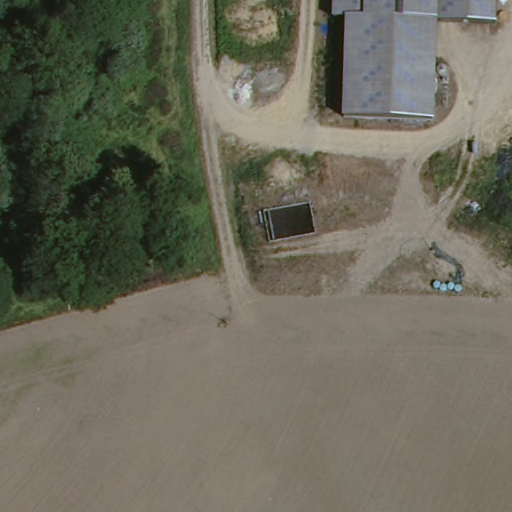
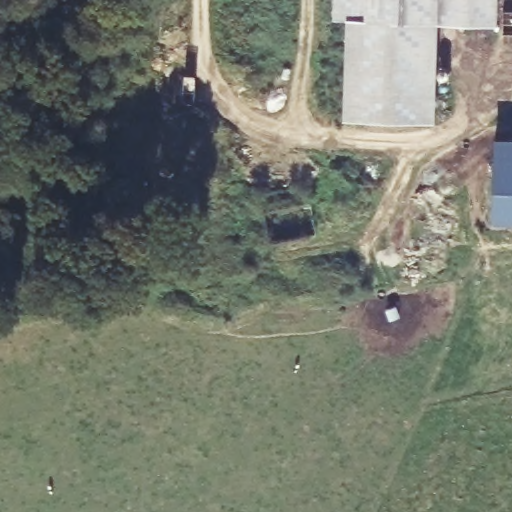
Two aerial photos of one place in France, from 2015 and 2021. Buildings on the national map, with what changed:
unchanged [(493,28),(434,28),(433,125),(337,124),(338,26),(325,26),(326,0),(494,0),(493,28)]
new [(491,221),(494,139),(512,139),(512,221),(491,221)]

